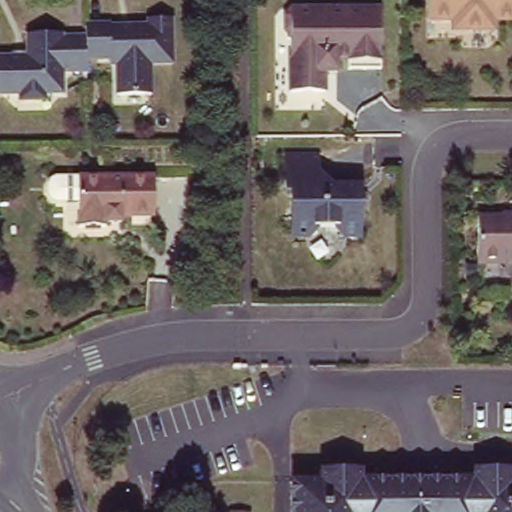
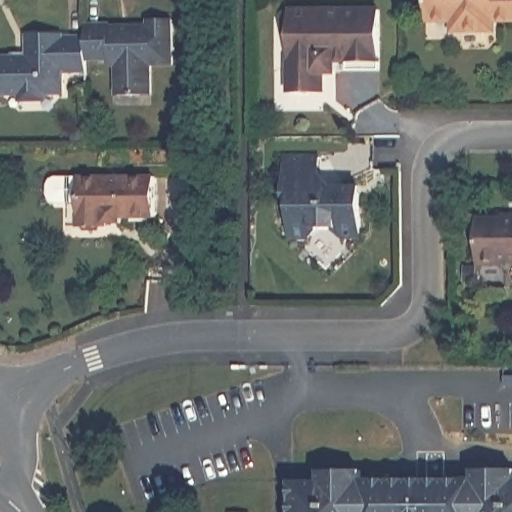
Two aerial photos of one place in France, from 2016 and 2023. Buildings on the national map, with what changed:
unchanged [(448,25),(448,15),(421,15),(422,0),(512,0),(512,13),(489,14),(489,19),(489,24),(472,24),(448,25)]
unchanged [(385,7),(385,67),(352,67),(352,57),(340,57),(340,70),(328,70),(327,90),(293,91),(294,32),(289,27),(290,13),(295,8),(385,7)]
unchanged [(10,47),(11,51),(23,52),(25,24),(65,24),(64,30),(82,29),(81,21),(106,21),(105,31),(126,31),(125,24),(143,23),(142,14),(167,15),(168,61),(144,62),(143,93),(107,93),(108,58),(81,59),(82,68),(63,68),(60,88),(49,89),(44,97),(21,98),(12,89),(0,89),(0,47),(10,47)]
unchanged [(317,166),(330,179),(339,179),(360,179),(360,185),(360,230),(340,230),(331,221),(316,221),(308,230),(290,230),(290,187),(285,187),(285,150),(317,151),(317,166)]
unchanged [(156,171),(156,212),(120,213),(120,220),(105,220),(105,224),(77,223),(76,172),(156,171)]
unchanged [(499,212),(512,212),(512,258),(500,258),(500,261),(474,260),(474,214),(499,214),(499,212)]
unchanged [(318,481),(318,459),(363,459),(364,481),(468,481),(468,455),(512,455),(512,512),(292,512),(291,481),(318,481)]

